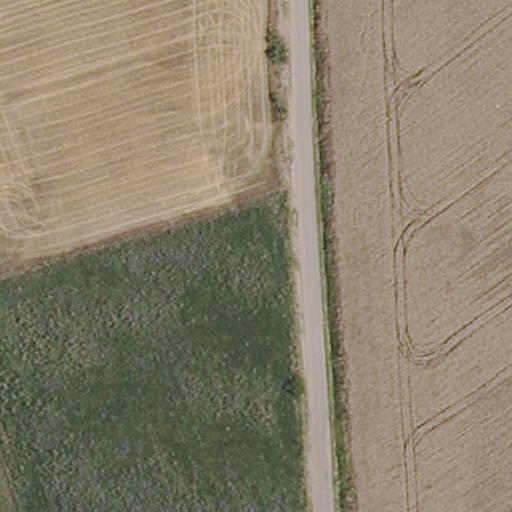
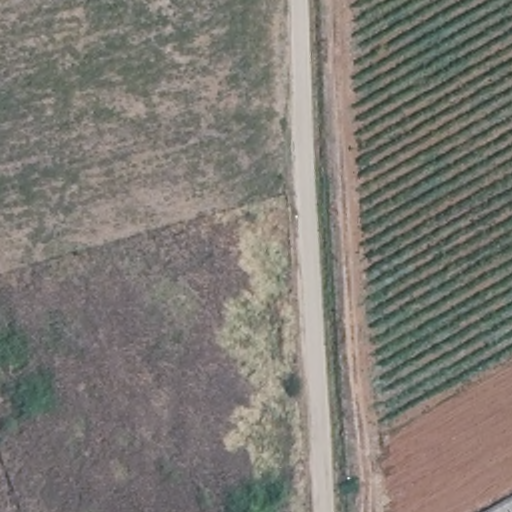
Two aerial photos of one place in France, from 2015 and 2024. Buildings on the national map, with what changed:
new [(512,512),(485,512),(512,497),(512,512)]

